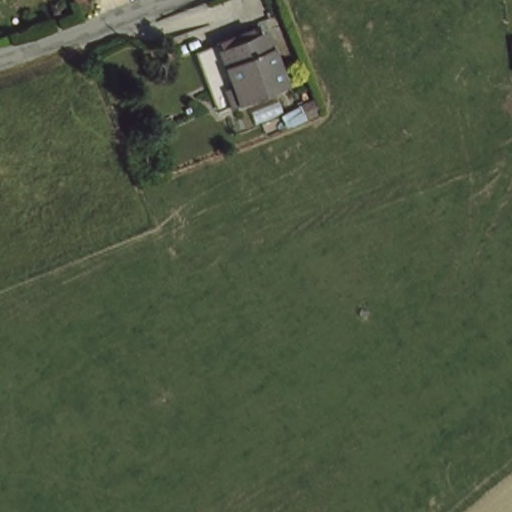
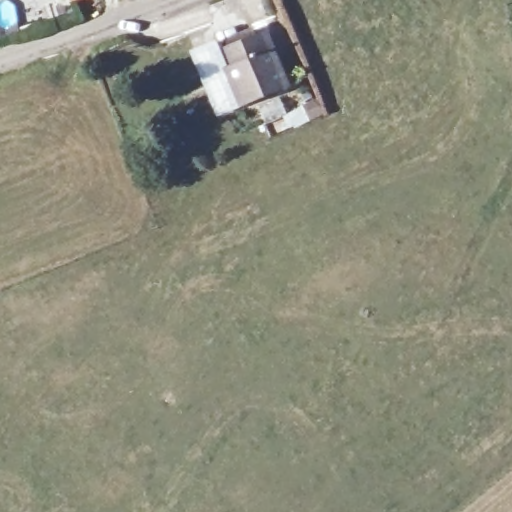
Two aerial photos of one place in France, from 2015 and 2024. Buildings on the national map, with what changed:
unchanged [(233,114),(211,61),(208,51),(268,30),(271,39),(280,36),(299,91),(233,114)]
unchanged [(321,119),(304,125),(299,112),(318,107),(321,119)]

